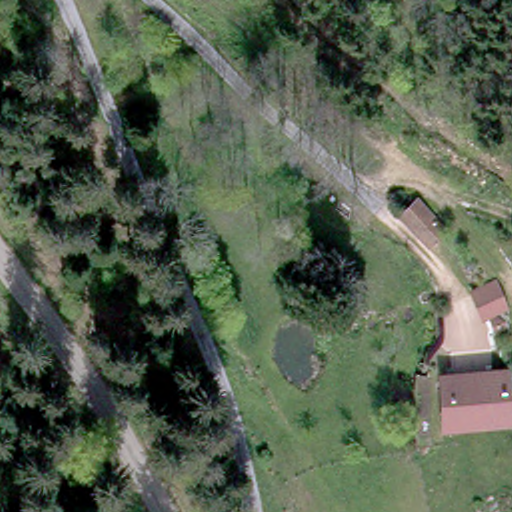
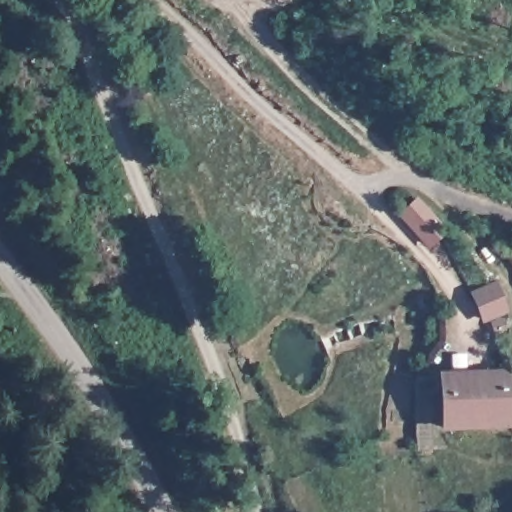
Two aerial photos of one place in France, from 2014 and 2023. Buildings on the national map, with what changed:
unchanged [(448,226),(443,231),(428,244),(399,210),(419,190),(448,226)]
unchanged [(484,330),(476,305),(501,297),(509,322),(484,330)]
unchanged [(471,432),(444,432),(445,374),(512,375),(512,432),(500,432),(471,432)]

